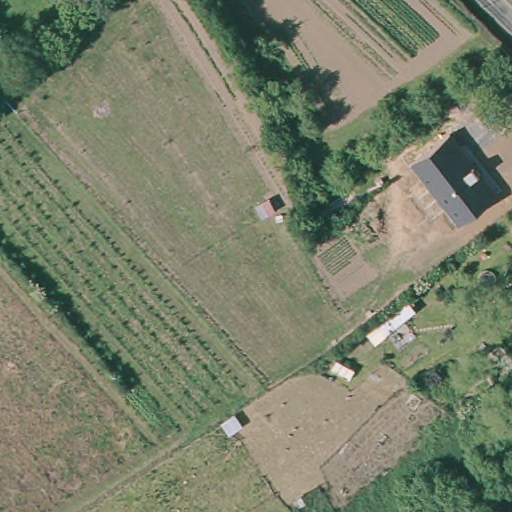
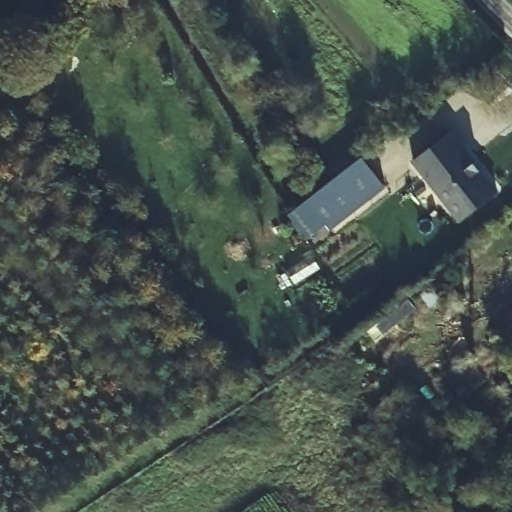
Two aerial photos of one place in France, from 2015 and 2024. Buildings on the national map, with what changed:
unchanged [(500,190),(462,222),(412,159),(450,130),(500,190)]
new [(358,155),(382,184),(326,227),(302,198),(358,155)]

